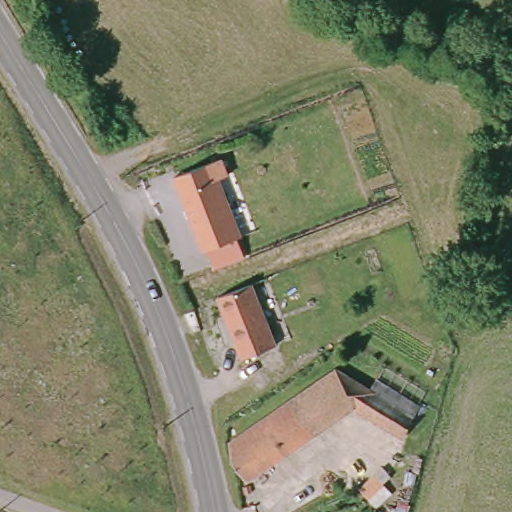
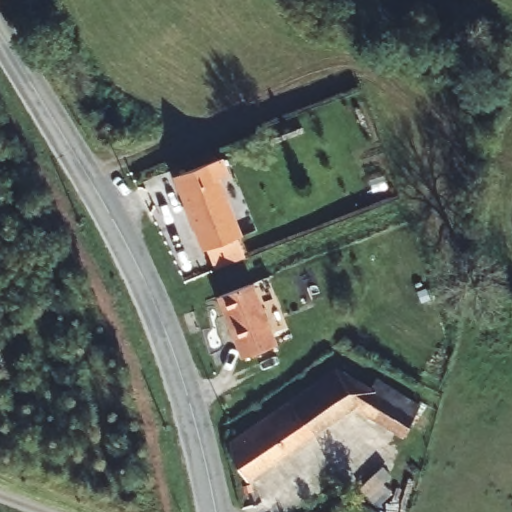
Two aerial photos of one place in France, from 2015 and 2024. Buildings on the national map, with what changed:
unchanged [(169,176),(215,156),(221,172),(212,176),(238,233),(201,249),(169,176)]
unchanged [(236,359),(210,302),(242,288),(266,342),(269,349),(237,362),(236,359)]
unchanged [(337,373),(374,395),(379,390),(385,390),(418,410),(405,440),(353,407),(249,482),(240,469),(236,450),(337,373)]

